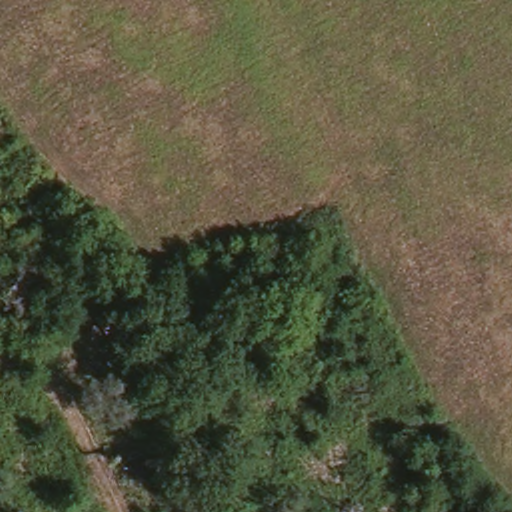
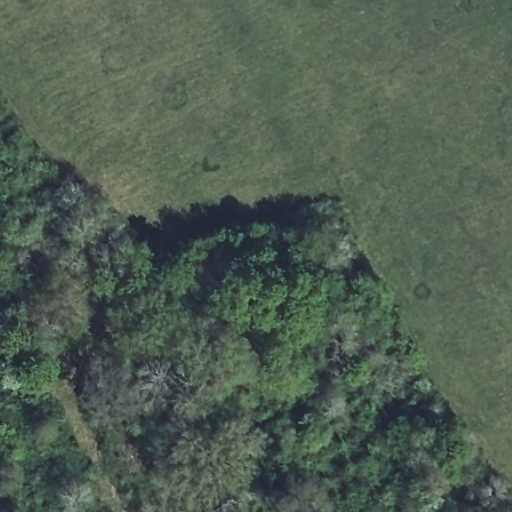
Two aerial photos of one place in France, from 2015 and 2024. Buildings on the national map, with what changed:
unchanged [(84,325),(98,315),(111,333),(95,343),(84,325)]

